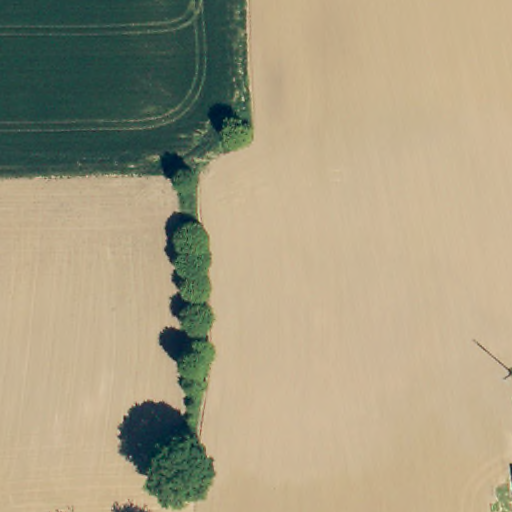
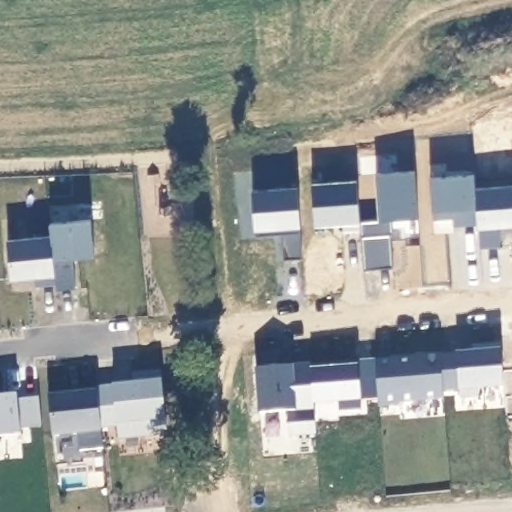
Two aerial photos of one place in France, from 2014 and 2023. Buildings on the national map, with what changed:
new [(360,222),(379,220),(376,173),(415,171),(418,218),(392,220),(393,235),(391,235),(393,268),(363,271),(360,222)]
new [(474,175),(477,225),(460,226),(460,218),(432,220),(430,178),(474,175)]
new [(357,181),(361,230),(343,232),(342,224),(315,226),(312,184),(357,181)]
new [(498,227),(500,247),(480,249),(475,189),(512,186),(512,226),(498,227)]
new [(256,237),(252,191),(297,187),(302,259),(283,261),(281,235),(256,237)]
new [(460,218),(460,226),(452,227),(452,219),(460,218)]
new [(91,219),(95,256),(72,258),(75,288),(57,291),(50,224),(91,219)]
new [(51,237),(56,285),(36,287),(35,276),(11,278),(7,241),(51,237)]
new [(478,397),(460,398),(459,390),(443,392),(440,355),(472,352),(472,345),(500,343),(503,387),(477,388),(478,397)]
new [(278,370),(309,368),(309,365),(310,365),(316,435),(288,437),(286,412),(260,413),(255,354),(277,352),(278,370)]
new [(398,404),(378,406),(375,362),(441,356),(443,398),(398,402),(398,404)]
new [(132,376),(161,373),(167,432),(118,437),(117,425),(101,426),(97,389),(134,385),(132,376)]
new [(66,379),(67,389),(97,387),(103,448),(80,451),(78,433),(52,436),(47,382),(66,379)]
new [(21,434),(0,436),(0,396),(17,394),(17,399),(39,397),(42,426),(20,428),(21,434)]

